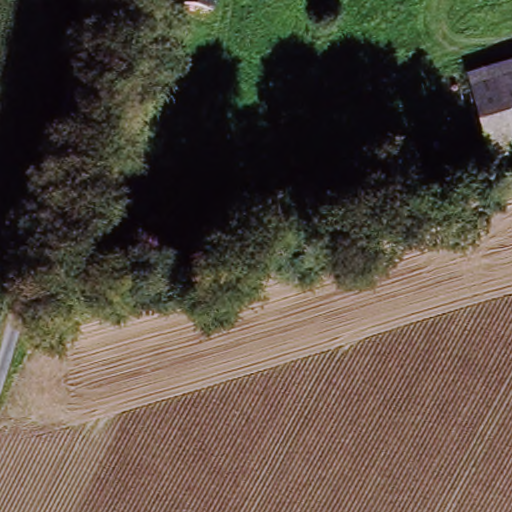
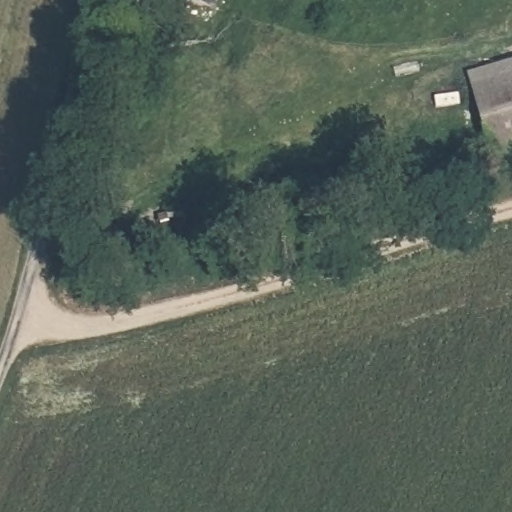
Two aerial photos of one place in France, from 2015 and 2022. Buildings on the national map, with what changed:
unchanged [(181,5),(182,0),(226,0),(222,14),(181,5)]
unchanged [(512,62),(512,105),(477,115),(465,77),(512,62)]
unchanged [(512,151),(489,158),(477,115),(512,105),(512,151)]

